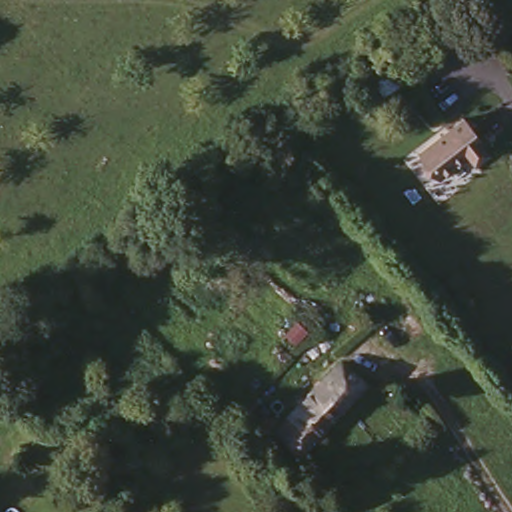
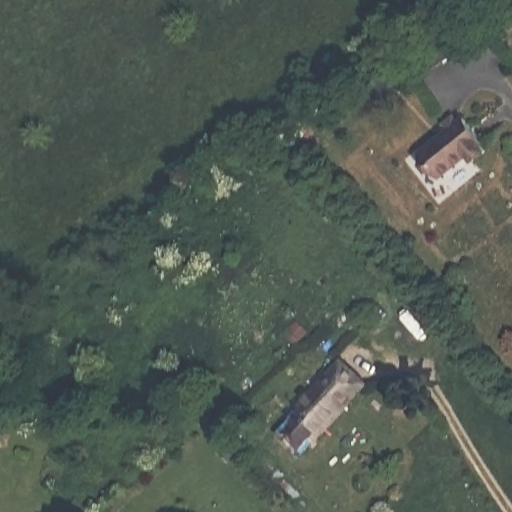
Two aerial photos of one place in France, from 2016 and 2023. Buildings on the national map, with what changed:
unchanged [(415,147),(457,113),(477,136),(475,137),(480,144),(468,155),(462,148),(433,171),(415,147)]
unchanged [(340,362),(363,382),(299,454),(276,434),(340,362)]

